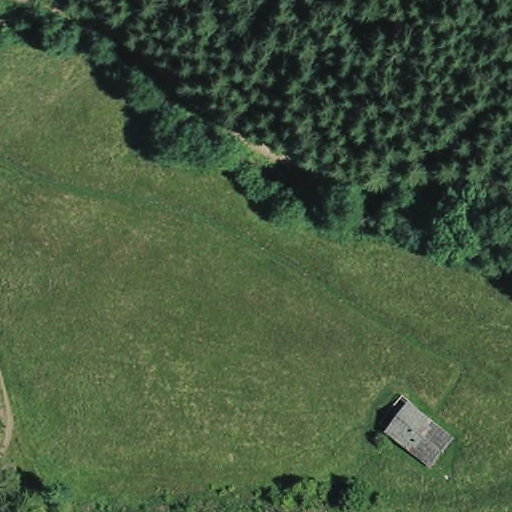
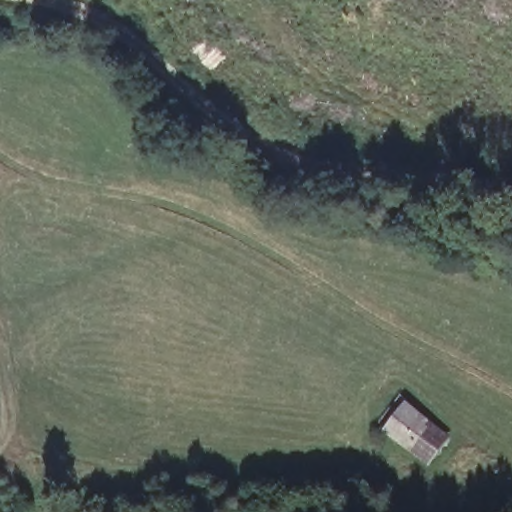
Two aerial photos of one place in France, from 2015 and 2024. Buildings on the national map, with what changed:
unchanged [(440,465),(415,447),(397,434),(387,427),(410,397),(419,404),(416,409),(434,422),(458,440),(440,465)]

